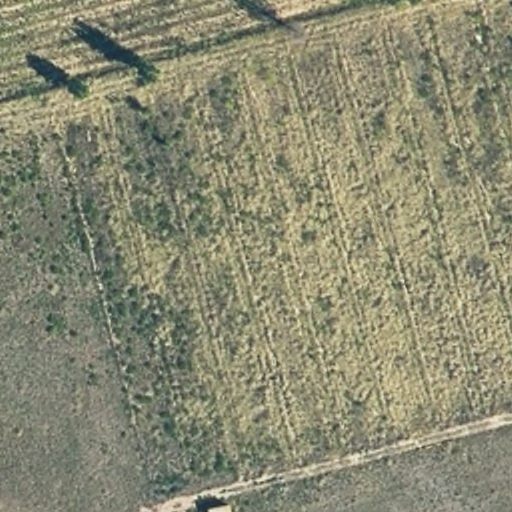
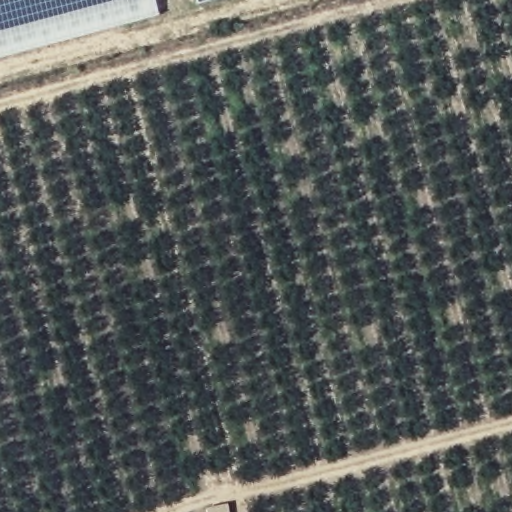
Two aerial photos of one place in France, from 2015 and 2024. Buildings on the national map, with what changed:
new [(0,0),(152,0),(156,16),(0,58),(0,0)]
new [(195,0),(213,0),(197,4),(195,0)]
unchanged [(228,505),(230,512),(203,512),(203,511),(228,505)]

